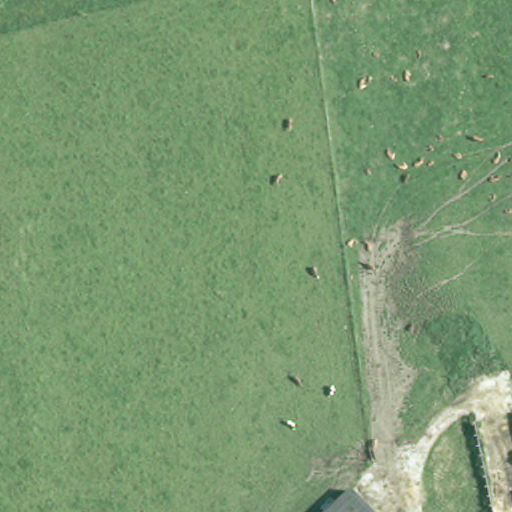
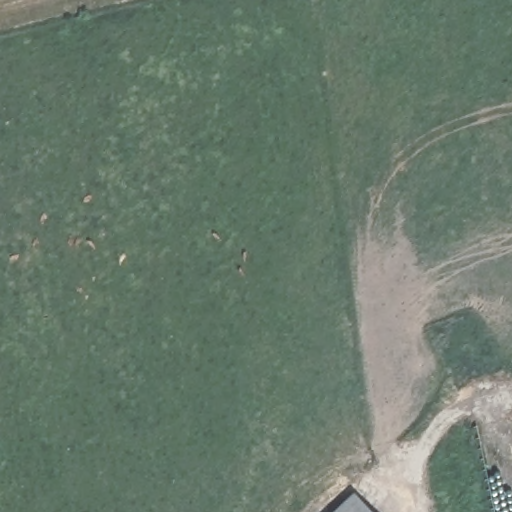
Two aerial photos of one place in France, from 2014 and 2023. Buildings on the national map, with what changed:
unchanged [(372,512),(325,512),(349,488),(372,512)]

